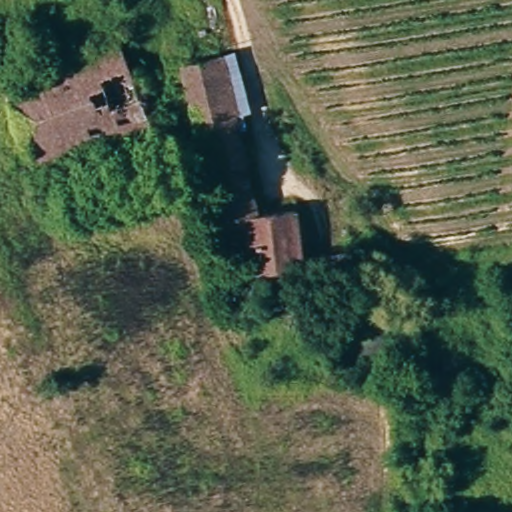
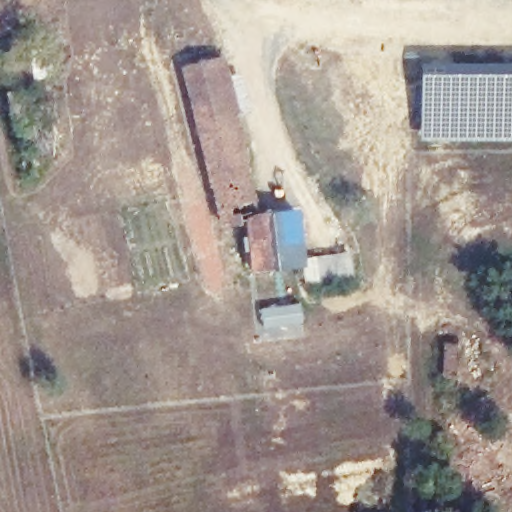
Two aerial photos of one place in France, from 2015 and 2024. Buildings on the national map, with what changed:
demolished [(35,164),(11,89),(27,83),(20,68),(123,34),(152,124),(35,164)]
unchanged [(234,50),(250,118),(229,123),(221,89),(188,98),(179,63),(234,50)]
new [(421,139),(421,62),(512,62),(512,140),(421,139)]
unchanged [(221,89),(229,123),(252,215),(309,201),(321,249),(321,252),(247,267),(238,218),(219,222),(188,98),(221,89)]

